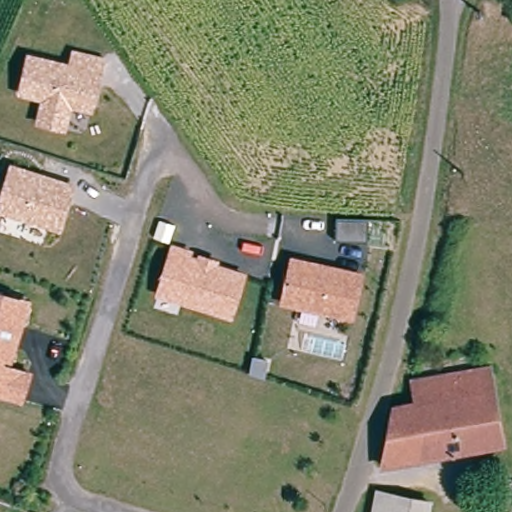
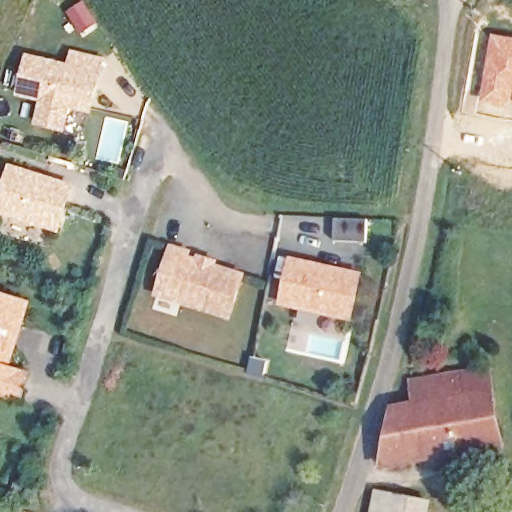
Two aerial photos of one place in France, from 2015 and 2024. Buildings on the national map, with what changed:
new [(512,38),(512,95),(509,107),(477,100),(490,34),(512,38)]
unchanged [(34,124),(39,101),(18,96),(27,54),(68,61),(70,49),(104,58),(90,115),(72,111),(67,132),(34,124)]
unchanged [(0,214),(0,194),(9,164),(66,179),(74,191),(60,232),(0,214)]
unchanged [(173,247),(188,251),(187,257),(240,276),(229,315),(159,295),(173,247)]
unchanged [(293,260),(360,276),(351,318),(283,302),(293,260)]
unchanged [(27,370),(21,392),(0,387),(0,291),(16,295),(23,296),(5,361),(28,367),(27,370)]
unchanged [(508,446),(414,465),(404,421),(426,416),(424,397),(497,385),(508,446)]
unchanged [(429,512),(368,512),(373,493),(430,507),(429,512)]

